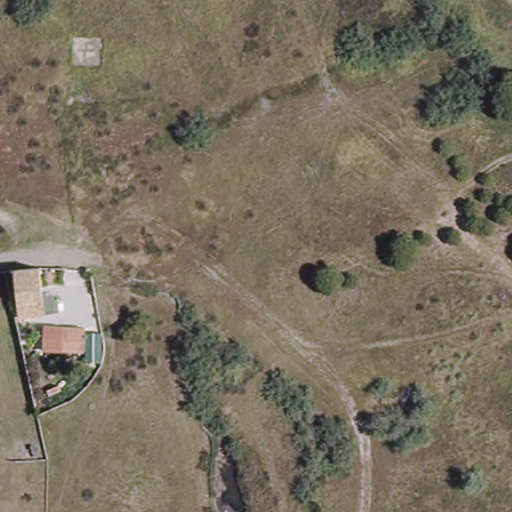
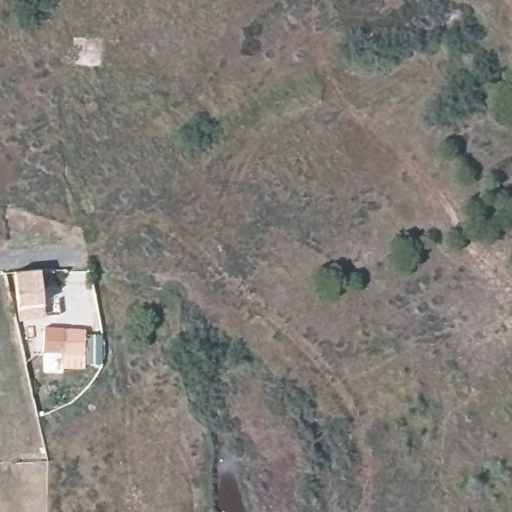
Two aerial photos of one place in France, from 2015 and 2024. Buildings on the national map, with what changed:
unchanged [(76,36),(103,36),(103,50),(76,50),(76,36)]
unchanged [(14,272),(38,270),(40,286),(38,288),(38,303),(18,304),(14,272)]
unchanged [(82,351),(58,353),(55,330),(81,329),(82,351)]

